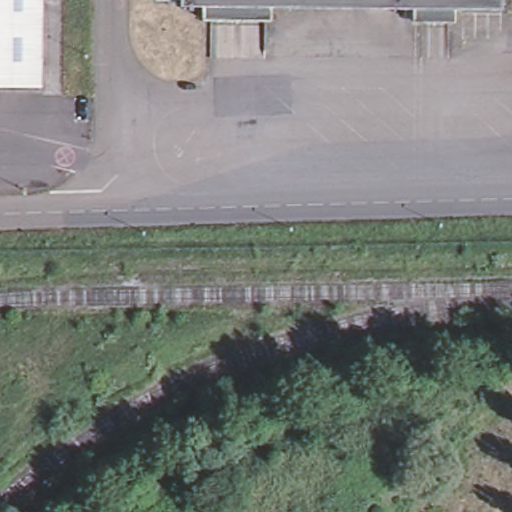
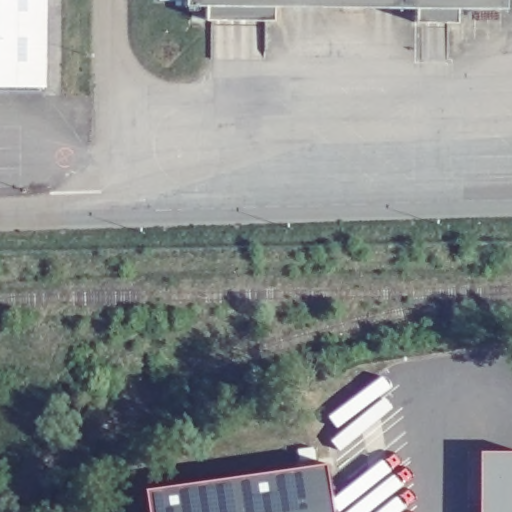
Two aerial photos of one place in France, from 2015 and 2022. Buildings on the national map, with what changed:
unchanged [(45,78),(0,78),(0,0),(47,0),(45,78)]
unchanged [(415,18),(415,4),(274,2),(205,1),(184,1),(184,0),(505,0),(505,4),(457,4),(457,19),(415,18)]
unchanged [(274,2),(273,17),(205,16),(205,1),(274,2)]
new [(512,454),(512,512),(485,512),(485,507),(469,507),(470,454),(512,454)]
new [(332,512),(151,512),(148,492),(325,464),(332,512)]

